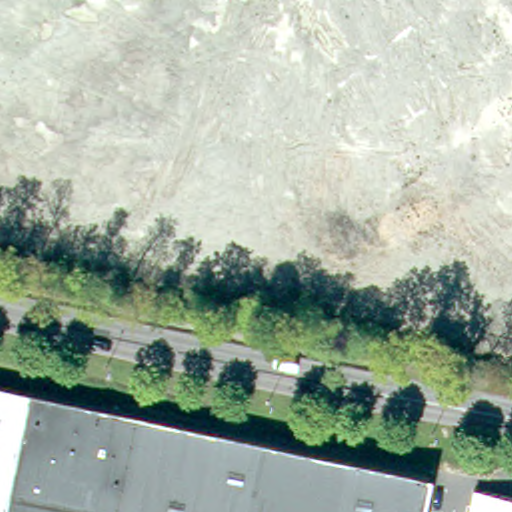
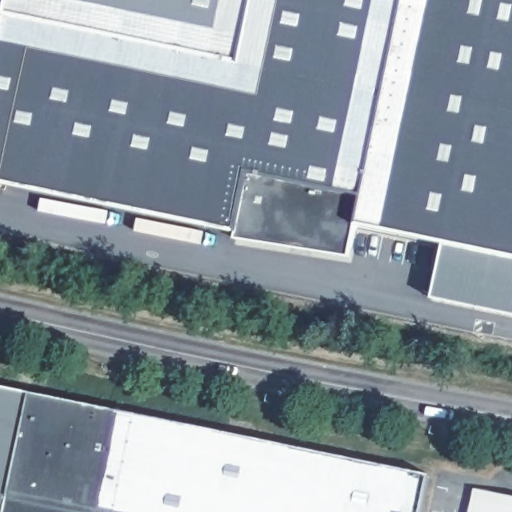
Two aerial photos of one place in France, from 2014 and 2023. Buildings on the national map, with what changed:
new [(512,314),(435,299),(445,245),(358,229),(353,257),(239,239),(241,234),(0,182),(0,45),(9,0),(512,0),(512,314)]
new [(28,389),(2,512),(0,512),(0,384),(28,389)]
unchanged [(426,475),(418,512),(2,512),(28,389),(426,475)]

